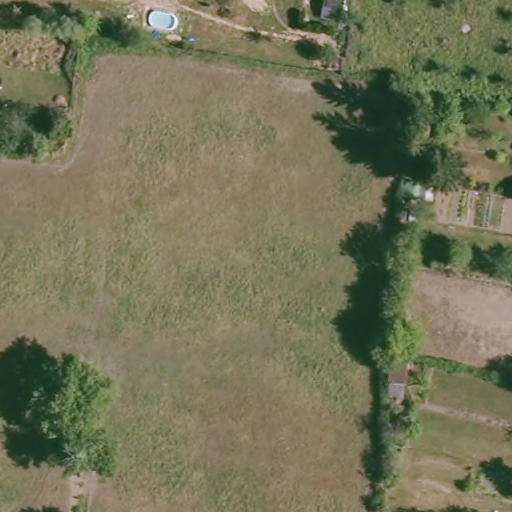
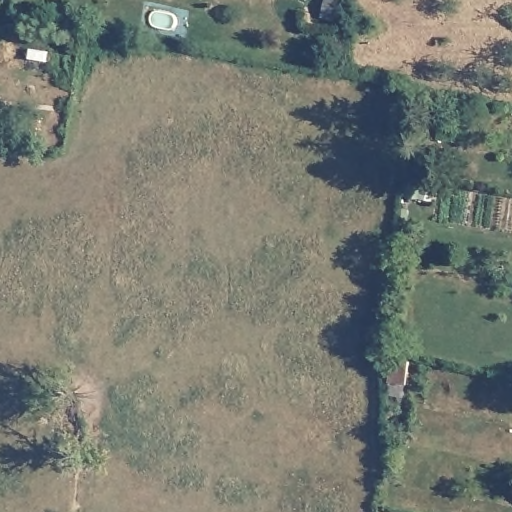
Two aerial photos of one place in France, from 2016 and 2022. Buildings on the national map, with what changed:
unchanged [(388,383),(394,361),(410,366),(404,387),(388,383)]

